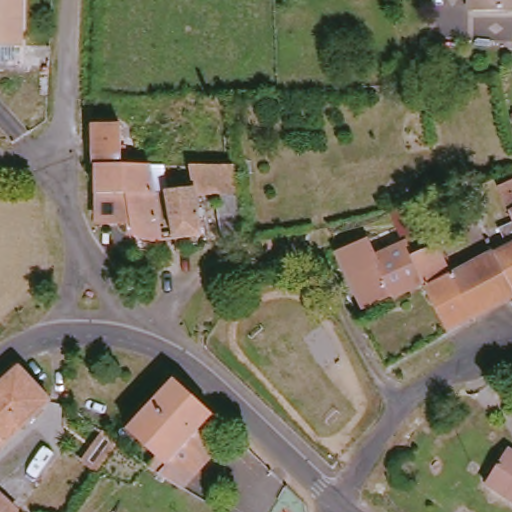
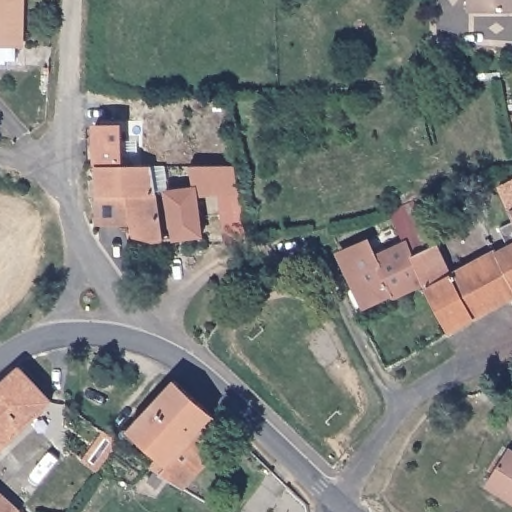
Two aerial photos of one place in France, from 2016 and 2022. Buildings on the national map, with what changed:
unchanged [(0,56),(0,0),(26,0),(25,57),(0,56)]
unchanged [(472,13),(472,0),(512,0),(512,10),(472,13)]
unchanged [(92,120),(117,120),(118,158),(92,158),(92,120)]
unchanged [(167,235),(162,186),(190,185),(189,161),(228,161),(233,187),(210,190),(192,191),(195,231),(167,235)]
unchanged [(157,236),(145,237),(127,232),(124,192),(94,191),(95,165),(147,163),(157,236)]
unchanged [(448,337),(425,286),(415,263),(437,252),(440,250),(453,277),(494,254),(497,257),(505,252),(497,234),(511,227),(508,218),(497,193),(512,186),(512,303),(507,305),(480,319),(448,337)]
unchanged [(220,240),(210,190),(233,187),(244,237),(220,240)]
unchanged [(124,192),(127,232),(92,218),(94,191),(124,192)]
unchanged [(437,252),(415,263),(407,247),(402,250),(387,215),(395,211),(415,201),(437,252)]
unchanged [(392,298),(362,310),(336,258),(365,244),(373,261),(402,250),(407,247),(415,263),(425,286),(392,298)]
unchanged [(49,399),(0,441),(0,384),(19,367),(49,399)]
unchanged [(123,424),(167,375),(205,410),(160,458),(123,424)]
unchanged [(198,434),(210,445),(177,481),(153,467),(160,458),(205,410),(213,418),(198,434)]
unchanged [(471,480),(492,444),(512,457),(512,506),(471,480)]
unchanged [(0,496),(17,512),(0,512),(0,496)]

